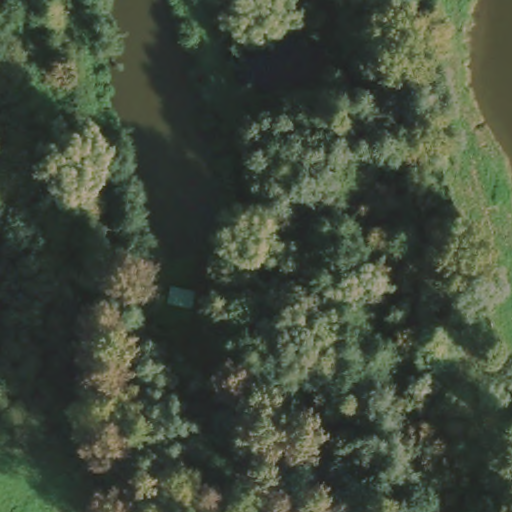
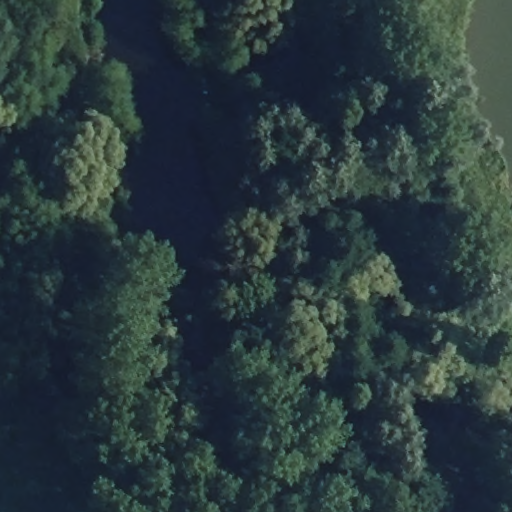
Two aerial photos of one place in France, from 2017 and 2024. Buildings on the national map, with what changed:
[]

